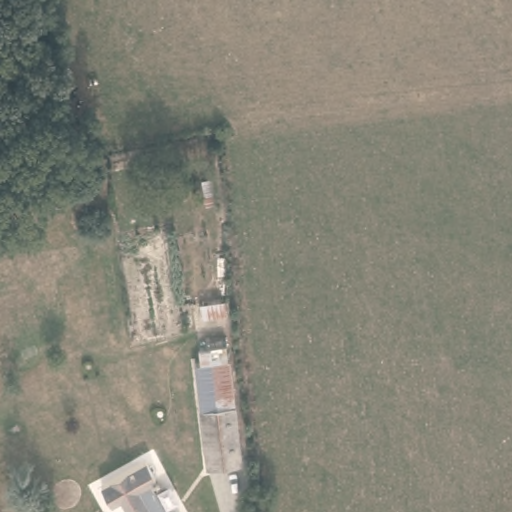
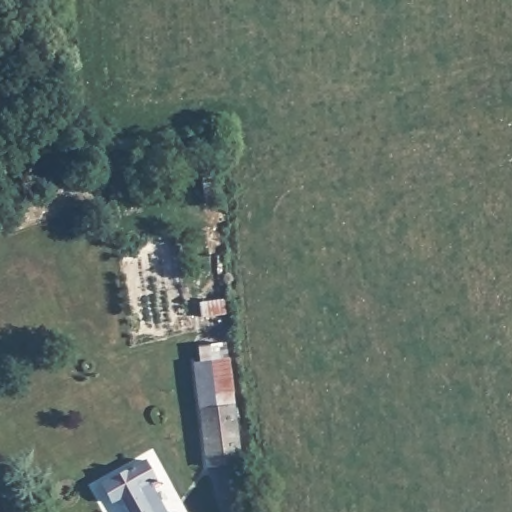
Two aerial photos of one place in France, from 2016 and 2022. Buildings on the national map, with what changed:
unchanged [(210,175),(215,201),(204,203),(199,176),(210,175)]
unchanged [(223,300),(224,313),(201,316),(199,302),(223,300)]
unchanged [(199,431),(198,415),(209,412),(206,378),(224,377),(236,482),(204,486),(197,431),(199,431)]
unchanged [(154,477),(147,482),(164,512),(127,512),(119,498),(111,502),(100,484),(144,460),(154,477)]

